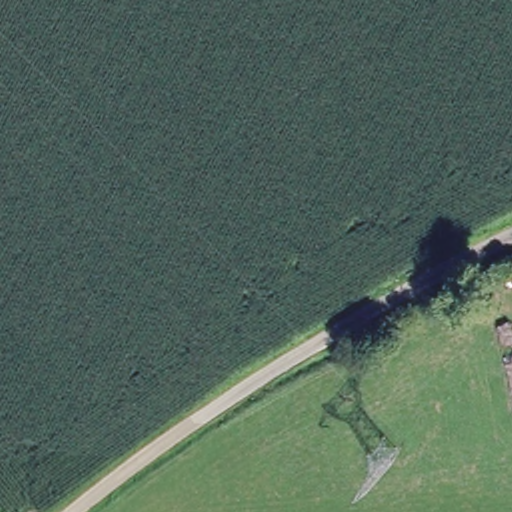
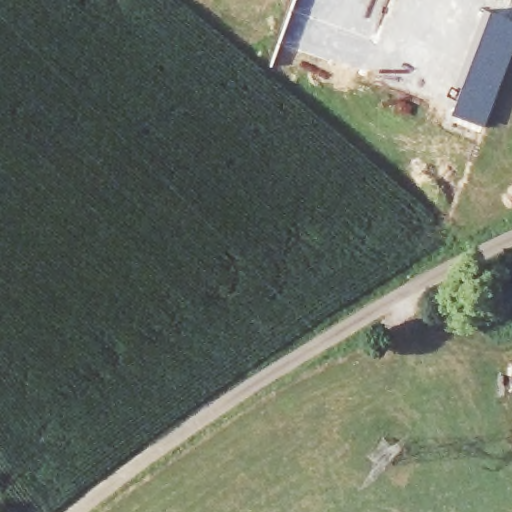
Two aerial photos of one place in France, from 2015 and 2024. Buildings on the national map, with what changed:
new [(487,7),(506,13),(505,15),(512,17),(512,54),(484,127),(450,115),(466,64),(487,7)]

